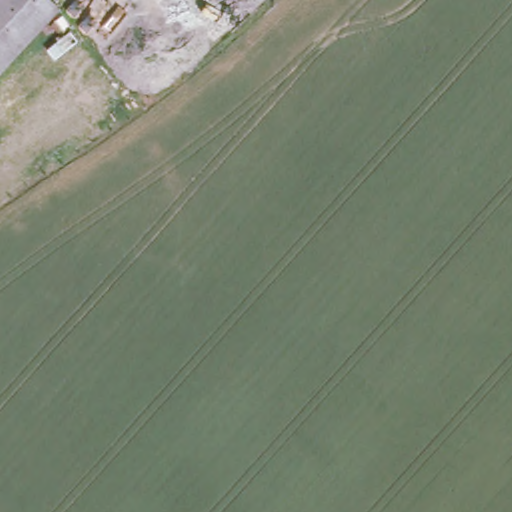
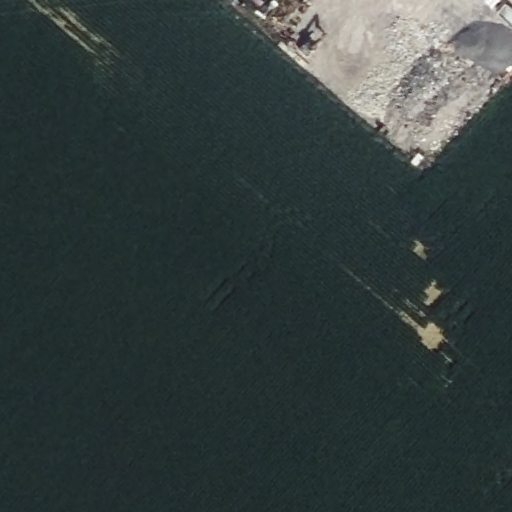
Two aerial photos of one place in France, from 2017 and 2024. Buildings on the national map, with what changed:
demolished [(61,9),(0,75),(0,0),(52,0),(61,9)]

